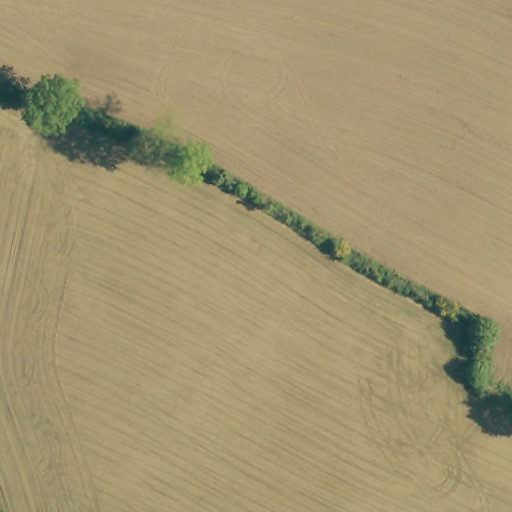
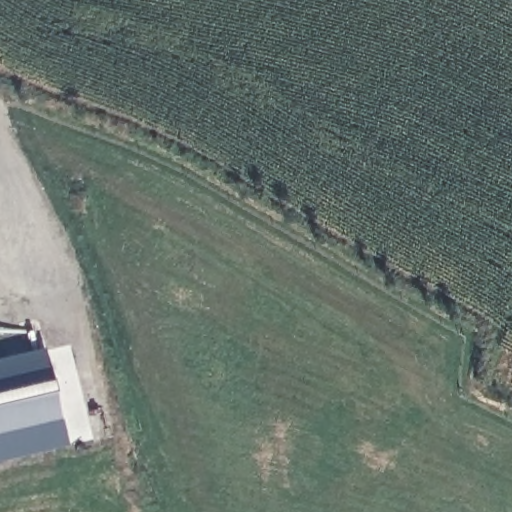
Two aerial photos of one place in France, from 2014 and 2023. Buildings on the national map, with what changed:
new [(56,361),(78,448),(0,467),(0,374),(56,361)]

